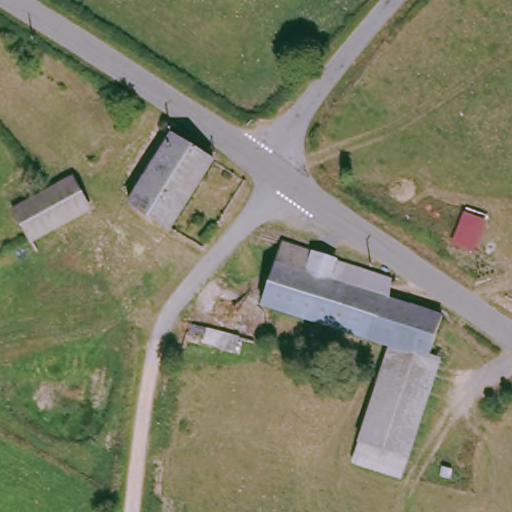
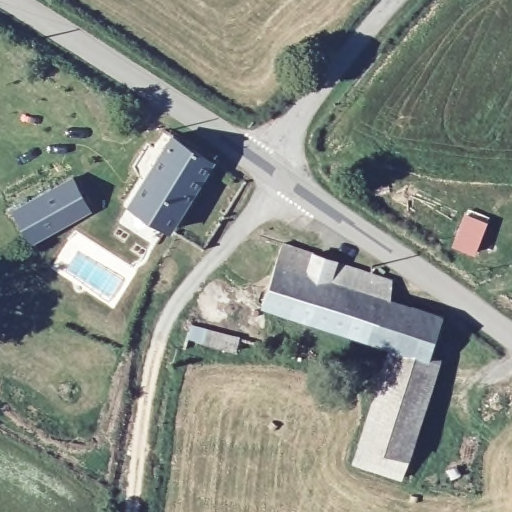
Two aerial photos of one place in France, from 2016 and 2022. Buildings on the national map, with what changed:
unchanged [(211,161),(170,228),(131,205),(164,151),(153,145),(162,130),(211,161)]
unchanged [(88,201),(51,223),(59,235),(38,246),(13,204),(70,170),(88,201)]
unchanged [(392,278),(389,296),(440,312),(427,356),(388,344),(259,306),(279,242),(392,278)]
unchanged [(237,335),(234,347),(209,339),(209,335),(188,328),(193,321),(237,335)]
unchanged [(427,356),(434,358),(402,475),(355,462),(388,344),(427,356)]

